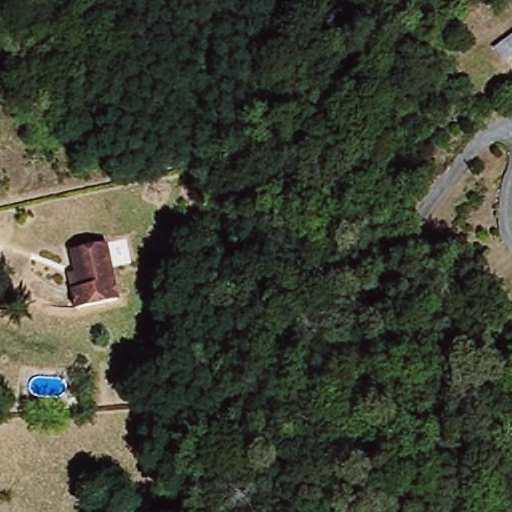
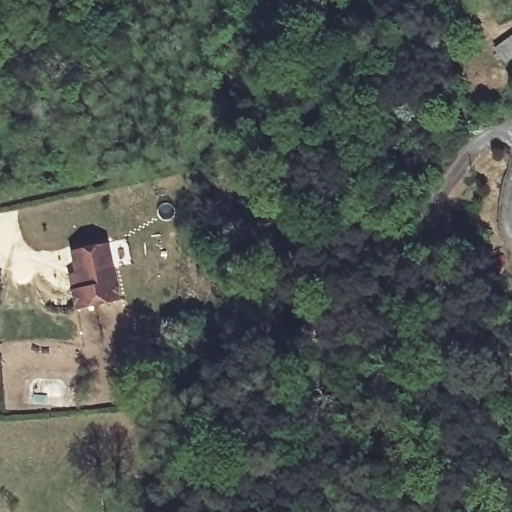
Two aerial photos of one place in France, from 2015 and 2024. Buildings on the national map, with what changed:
unchanged [(69,251),(105,244),(116,295),(73,304),(68,284),(66,269),(73,268),(69,251)]
unchanged [(138,350),(166,354),(163,370),(136,367),(138,350)]

